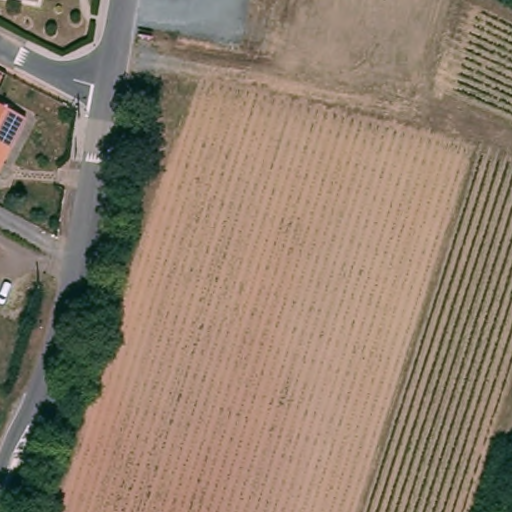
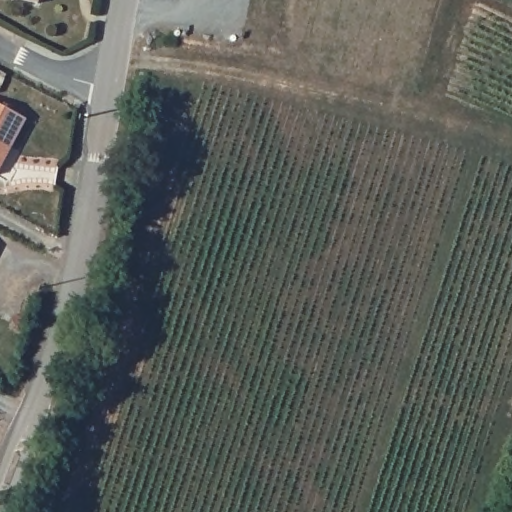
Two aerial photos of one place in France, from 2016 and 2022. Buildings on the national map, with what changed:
unchanged [(40,2),(27,0),(40,0),(40,2)]
unchanged [(24,117),(0,158),(0,102),(24,117)]

